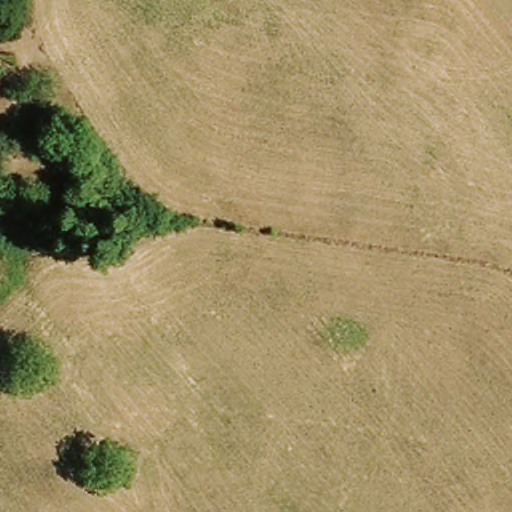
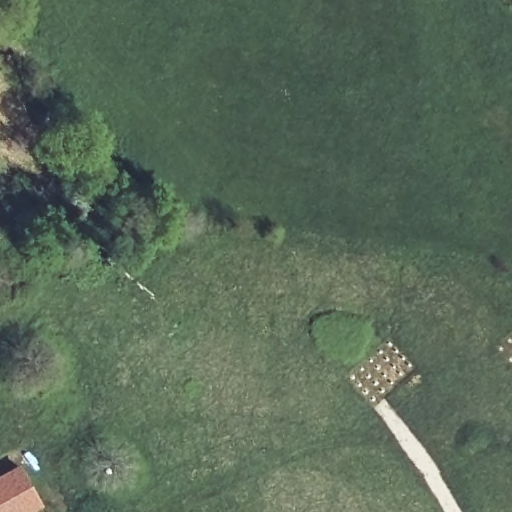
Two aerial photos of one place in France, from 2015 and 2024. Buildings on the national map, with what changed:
new [(43,506),(33,512),(0,512),(0,474),(20,463),(43,506)]

